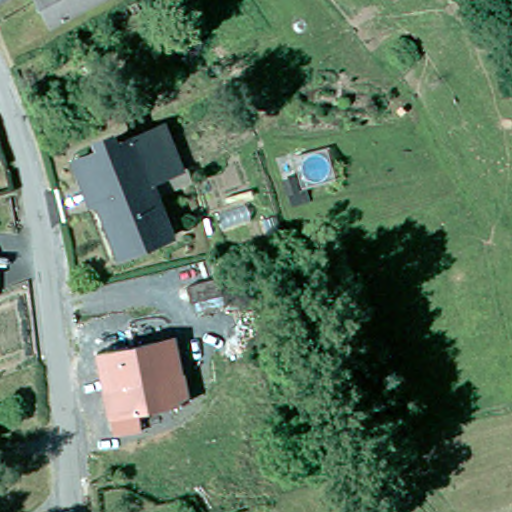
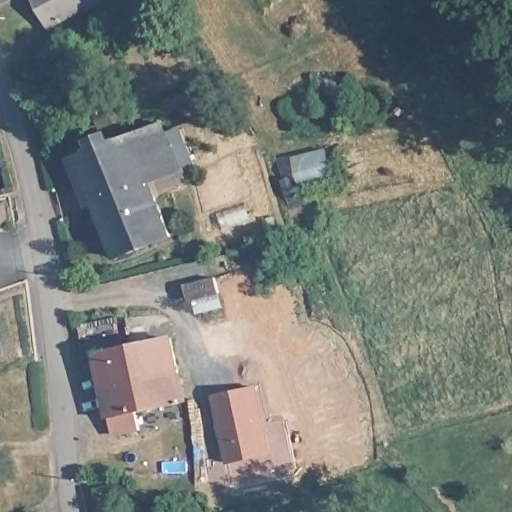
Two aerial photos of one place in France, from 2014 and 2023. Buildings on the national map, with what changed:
unchanged [(30,0),(99,0),(44,28),(30,0)]
unchanged [(167,125),(186,171),(156,183),(178,237),(124,258),(85,159),(167,125)]
unchanged [(187,299),(182,284),(209,276),(214,291),(187,299)]
unchanged [(178,336),(189,400),(150,408),(155,438),(132,443),(119,445),(103,352),(178,336)]
new [(273,454),(225,464),(212,394),(259,384),(273,454)]

